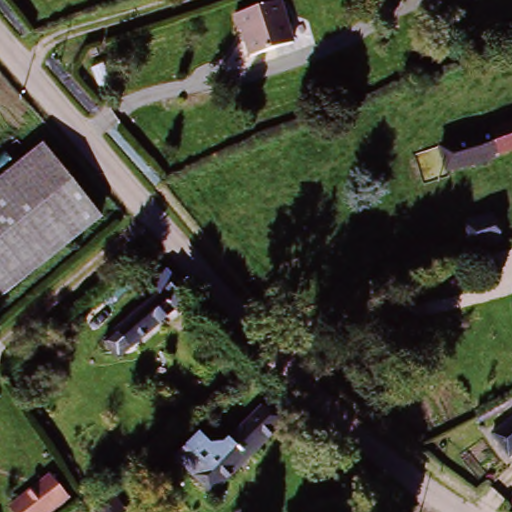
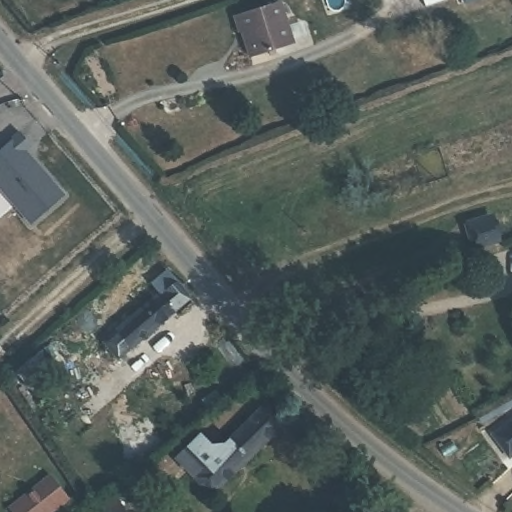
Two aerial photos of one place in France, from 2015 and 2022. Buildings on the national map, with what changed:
unchanged [(275,3),(290,45),(245,60),(230,19),(275,3)]
unchanged [(512,123),(512,151),(445,175),(435,150),(512,123)]
demolished [(0,184),(41,149),(98,219),(0,300),(0,184)]
unchanged [(470,248),(463,229),(490,219),(496,239),(470,248)]
unchanged [(96,354),(106,347),(160,299),(151,289),(145,283),(161,269),(166,275),(191,303),(121,364),(112,373),(96,354)]
unchanged [(502,456),(486,433),(512,415),(512,448),(502,456)]
unchanged [(221,462),(265,419),(281,436),(212,500),(198,484),(181,467),(205,444),(221,462)]
unchanged [(15,511),(57,479),(73,501),(59,512),(16,512),(15,511)]
unchanged [(127,512),(97,512),(96,511),(115,496),(128,511),(127,512)]

